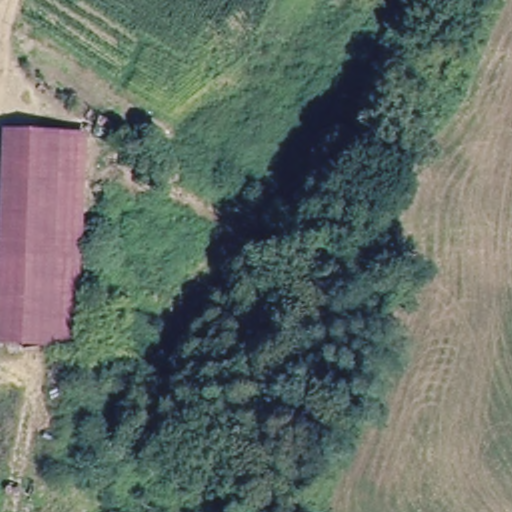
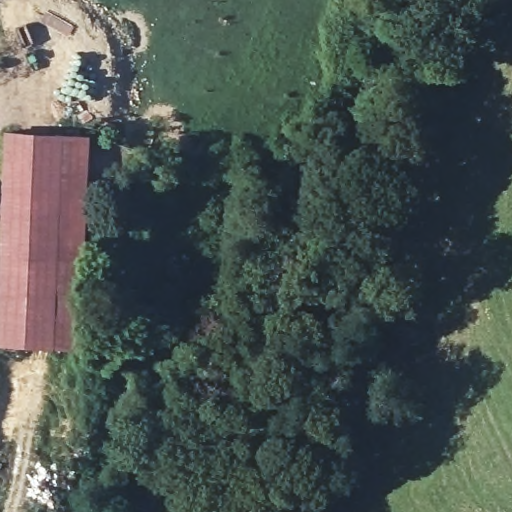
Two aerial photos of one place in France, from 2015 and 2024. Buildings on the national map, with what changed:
unchanged [(84,340),(1,334),(11,128),(91,132),(84,340)]

